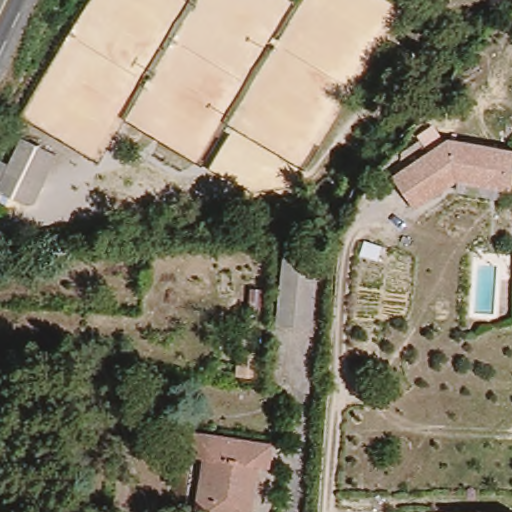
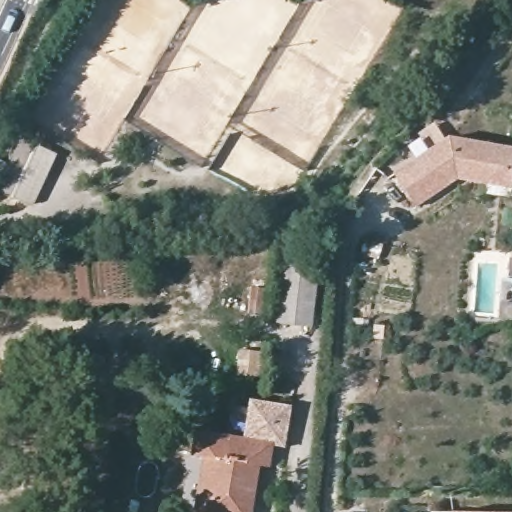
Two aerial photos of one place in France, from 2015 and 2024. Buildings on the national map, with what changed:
unchanged [(30,193),(10,198),(0,193),(0,171),(17,135),(49,151),(30,193)]
unchanged [(510,193),(452,187),(417,212),(394,173),(447,140),(512,150),(512,185),(510,193)]
unchanged [(308,328),(274,325),(282,249),(316,253),(308,328)]
unchanged [(262,312),(249,311),(251,287),(264,288),(262,312)]
unchanged [(261,376),(237,374),(239,349),(263,351),(261,376)]
new [(293,405),(285,448),(270,447),(244,443),(251,398),(293,405)]
unchanged [(200,459),(188,459),(193,435),(270,447),(266,471),(254,469),(248,512),(191,512),(200,459)]

